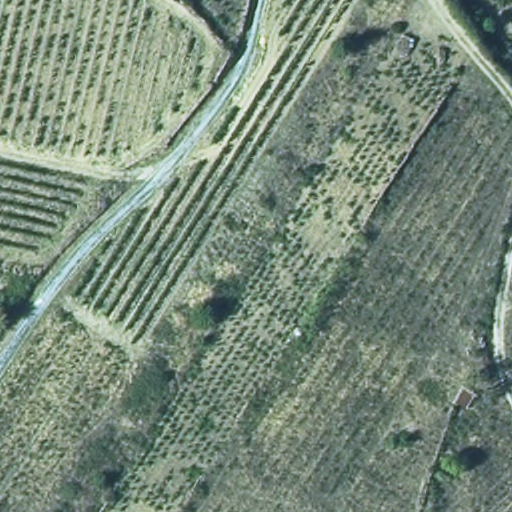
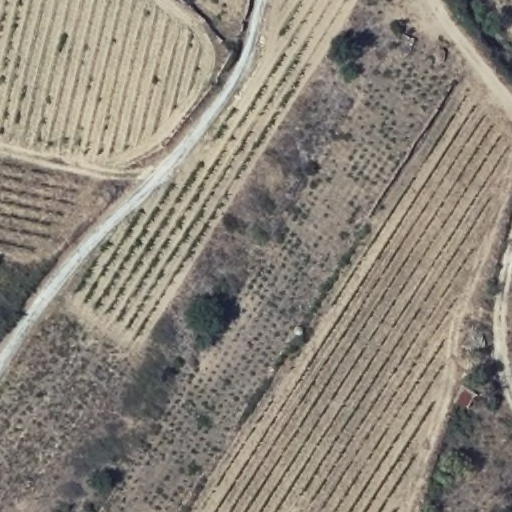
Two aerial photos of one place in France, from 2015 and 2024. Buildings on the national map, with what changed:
[]

